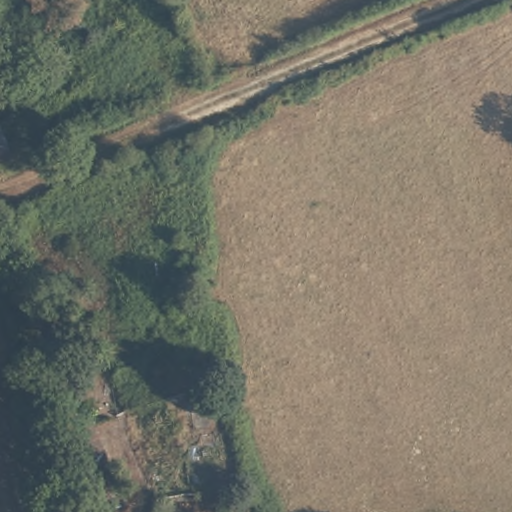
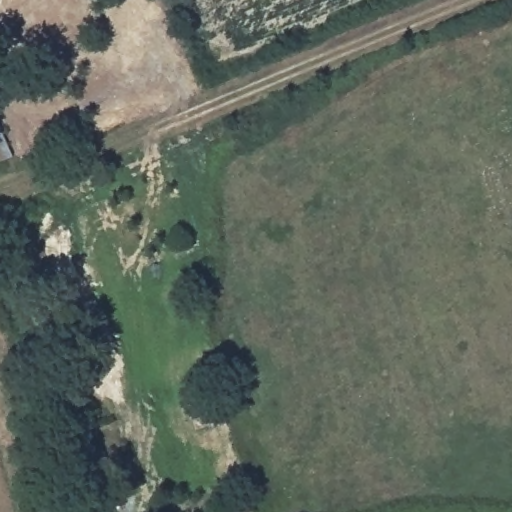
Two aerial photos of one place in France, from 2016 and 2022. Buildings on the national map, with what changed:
unchanged [(147,487),(151,512),(134,512),(129,490),(147,487)]

